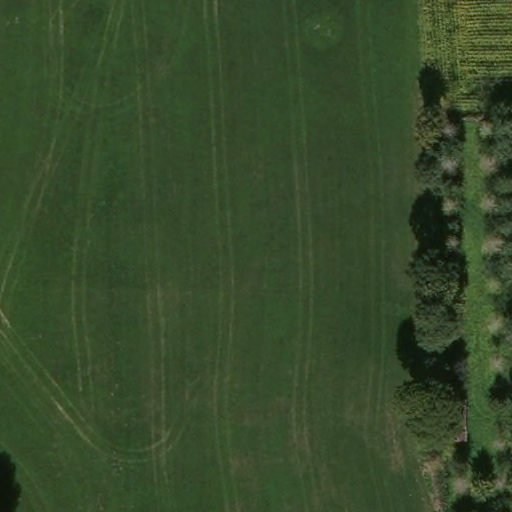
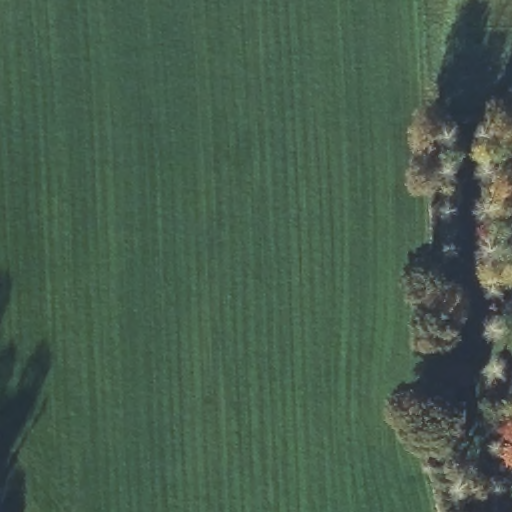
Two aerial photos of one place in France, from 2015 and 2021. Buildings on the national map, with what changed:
unchanged [(467,395),(468,438),(440,440),(438,397),(467,395)]

